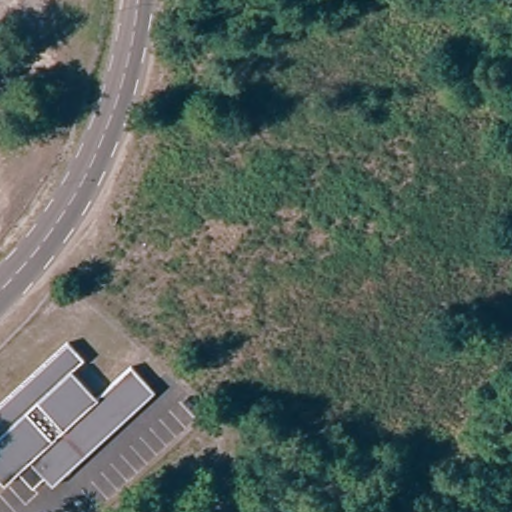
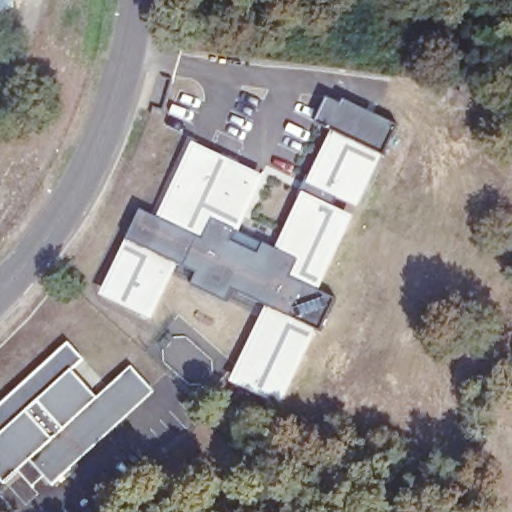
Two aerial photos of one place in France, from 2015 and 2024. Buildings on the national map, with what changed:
new [(265,176),(240,232),(275,249),(331,129),(314,121),(326,96),(342,104),(343,99),(397,124),(358,208),(335,197),(332,205),(353,216),(319,291),(335,299),(320,330),(317,329),(282,404),(230,381),(265,304),(232,289),(227,299),(190,284),(196,272),(177,263),(152,319),(100,297),(141,209),(157,217),(192,144),(265,176)]
unchanged [(21,472),(7,484),(0,477),(0,407),(71,343),(87,359),(75,370),(100,398),(134,367),(153,388),(69,464),(74,469),(55,486),(47,477),(36,488),(21,472)]

